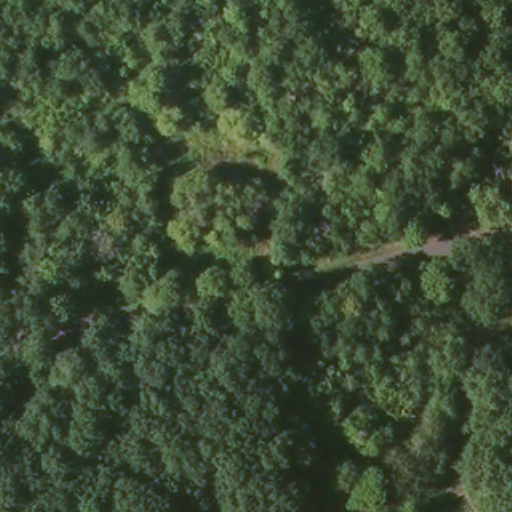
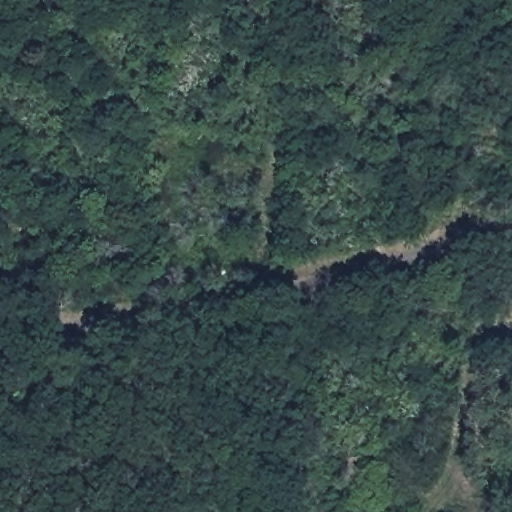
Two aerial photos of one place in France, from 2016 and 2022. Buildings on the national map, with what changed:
unchanged [(369,455),(366,491),(355,492),(356,505),(329,505),(329,453),(369,455)]

